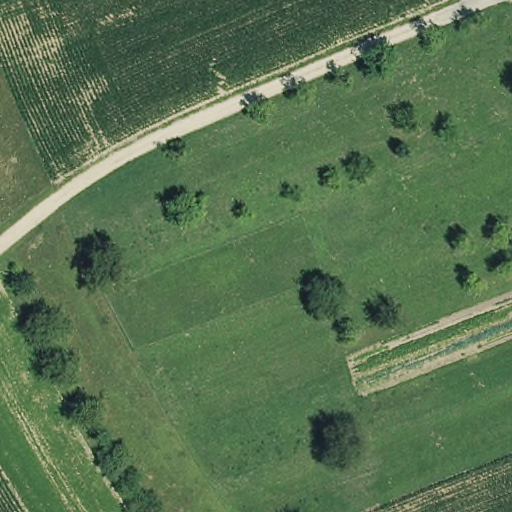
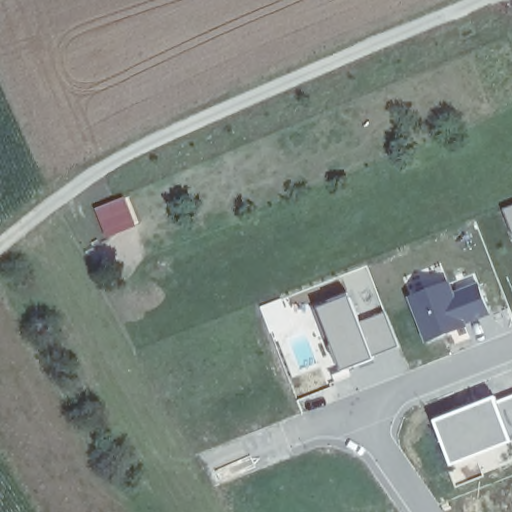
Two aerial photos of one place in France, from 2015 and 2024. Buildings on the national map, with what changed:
new [(512,206),(512,230),(504,209),(512,206)]
new [(450,283),(455,297),(482,286),(493,316),(469,325),(470,328),(448,336),(430,343),(413,297),(450,283)]
new [(350,297),(360,322),(387,311),(401,348),(374,358),(375,360),(333,377),(332,372),(338,369),(315,309),(350,297)]
new [(512,387),(512,432),(510,433),(512,439),(452,462),(437,417),(512,387)]

